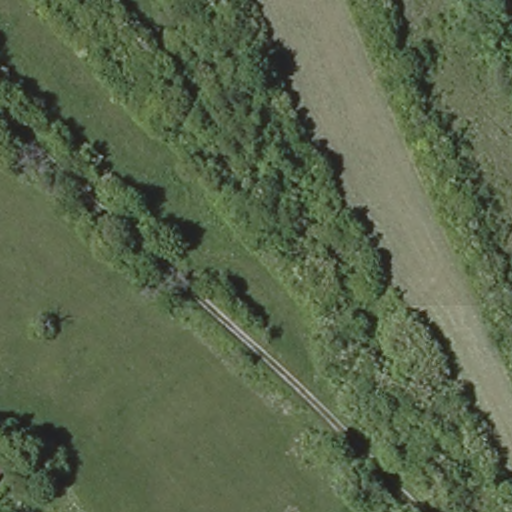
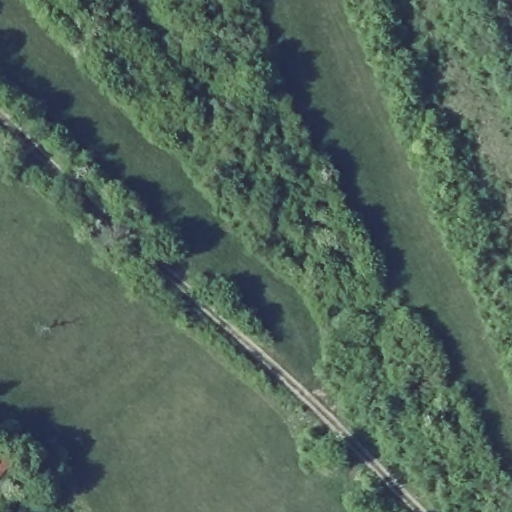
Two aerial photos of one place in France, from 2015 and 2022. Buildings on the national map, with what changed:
unchanged [(0,478),(0,463),(7,469),(0,478)]

